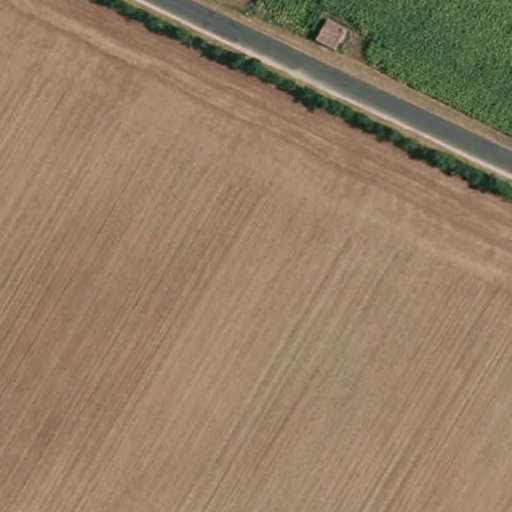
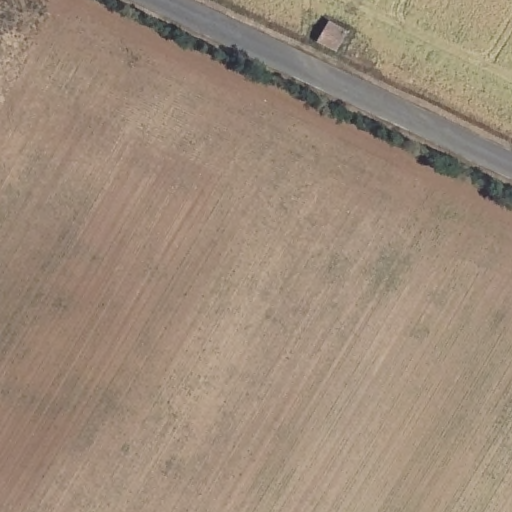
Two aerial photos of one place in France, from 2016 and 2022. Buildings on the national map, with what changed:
unchanged [(339,50),(319,39),(332,17),(351,27),(339,50)]

